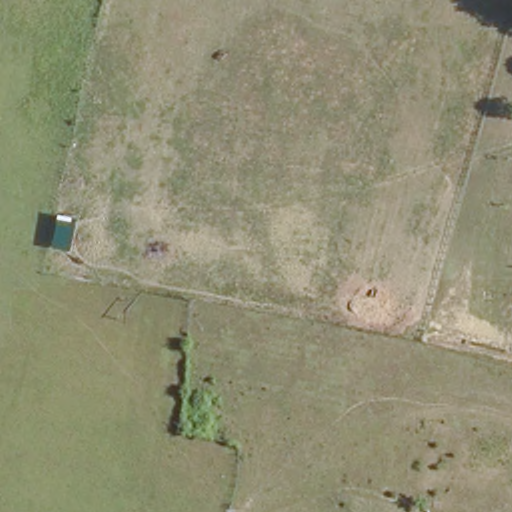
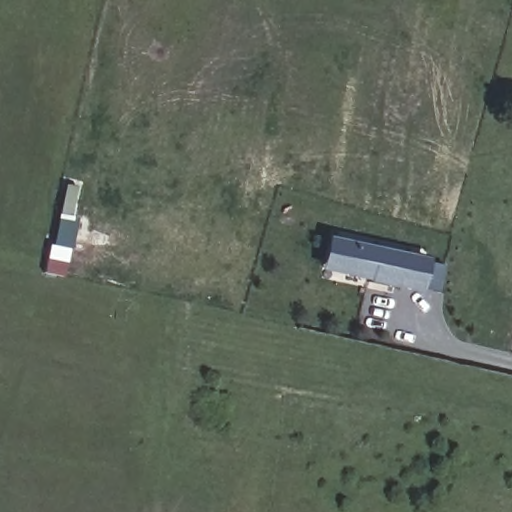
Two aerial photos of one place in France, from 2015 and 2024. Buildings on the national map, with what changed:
new [(426,257),(425,262),(442,267),(437,296),(322,271),(327,236),(426,257)]

